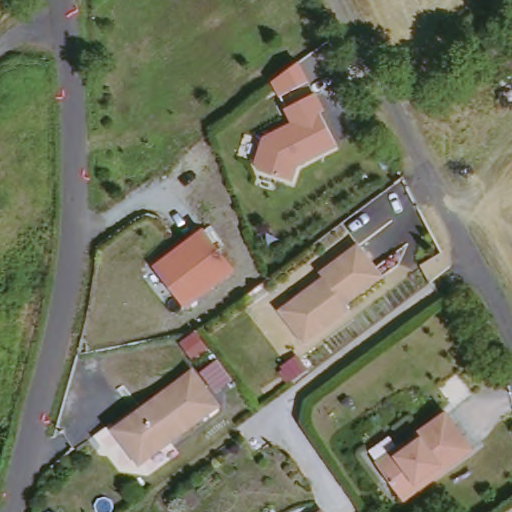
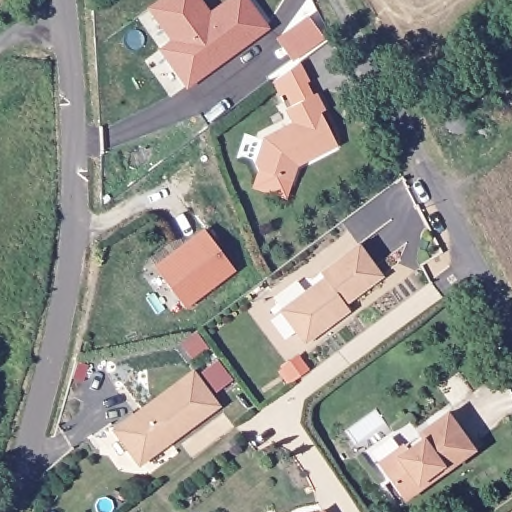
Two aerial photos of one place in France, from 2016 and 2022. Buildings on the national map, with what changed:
new [(159,50),(173,40),(148,7),(157,0),(201,0),(210,11),(225,0),(249,0),(270,29),(187,88),(159,50)]
new [(307,16),(324,39),(294,60),(278,39),(307,16)]
new [(309,80),(307,82),(314,95),(291,106),(284,94),(280,96),(271,81),(299,62),(309,80)]
unchanged [(286,109),(314,95),(319,104),(324,111),(319,114),(337,145),(296,165),(291,180),(260,170),(256,165),(264,140),(293,121),(286,109)]
unchanged [(185,303),(155,263),(204,229),(234,268),(185,303)]
unchanged [(329,275),(326,271),(366,244),(388,275),(351,304),(354,310),(311,342),(289,316),(284,309),(329,275)]
unchanged [(146,452),(140,455),(118,428),(184,380),(198,372),(223,406),(211,416),(152,459),(146,452)]
unchanged [(402,482),(395,488),(371,453),(421,420),(430,435),(459,415),(484,450),(417,502),(402,482)]
unchanged [(330,512),(322,512),(328,508),(330,512)]

